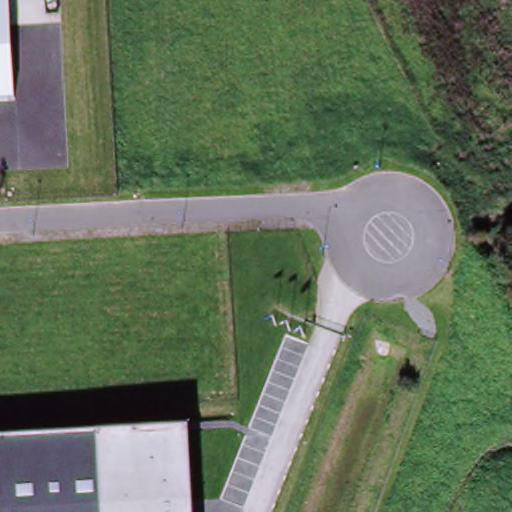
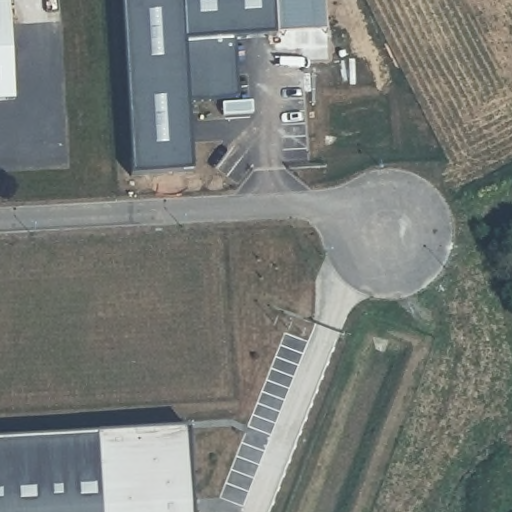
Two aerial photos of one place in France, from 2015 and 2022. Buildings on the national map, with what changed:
unchanged [(16,99),(0,99),(0,1),(10,0),(16,99)]
new [(245,53),(249,113),(200,115),(204,185),(142,189),(131,0),(283,0),(286,50),(245,53)]
unchanged [(0,441),(187,431),(191,512),(0,512),(0,441)]

